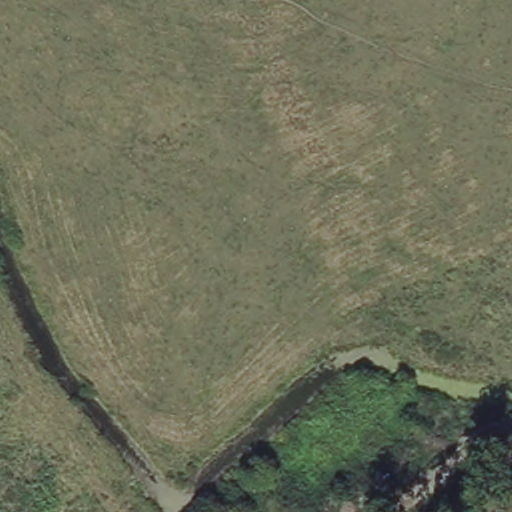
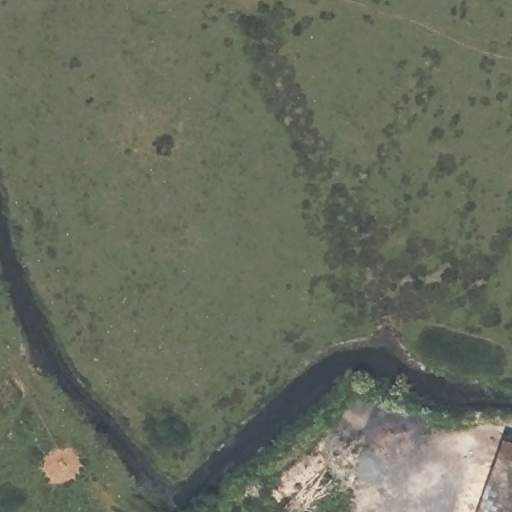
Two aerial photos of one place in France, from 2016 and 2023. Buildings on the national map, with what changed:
unchanged [(512,452),(512,512),(479,512),(495,461),(498,448),(506,450),(512,452)]

